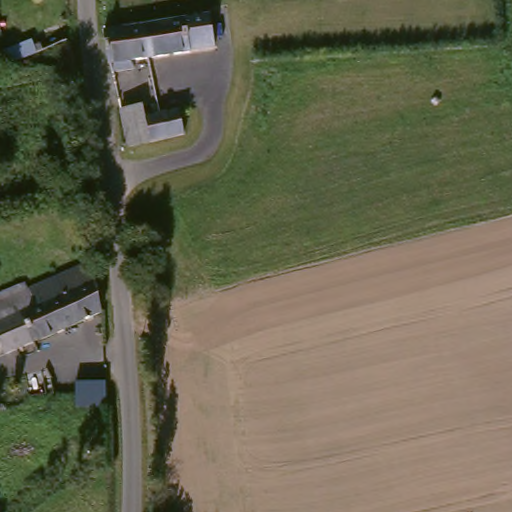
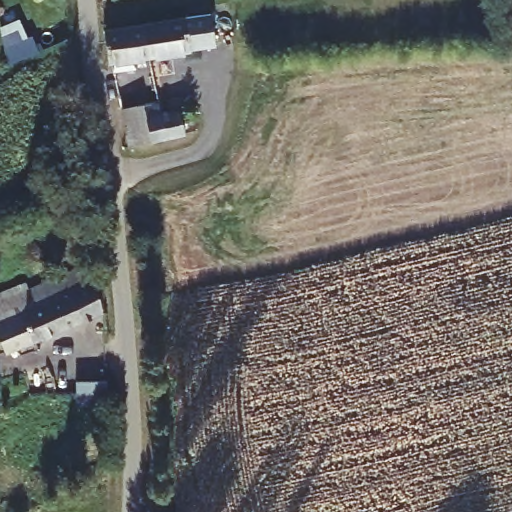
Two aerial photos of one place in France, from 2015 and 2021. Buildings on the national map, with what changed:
unchanged [(217,10),(226,37),(197,45),(159,51),(154,23),(217,10)]
unchanged [(121,59),(117,29),(154,23),(159,51),(121,59)]
unchanged [(4,60),(2,46),(39,36),(41,48),(4,60)]
unchanged [(136,139),(133,123),(130,106),(146,103),(150,119),(167,114),(185,110),(189,127),(190,131),(155,141),(137,146),(136,139)]
unchanged [(86,262),(109,309),(47,336),(11,351),(10,350),(0,328),(0,292),(31,277),(34,285),(86,262)]
unchanged [(112,403),(77,403),(76,394),(76,380),(110,380),(112,403)]

